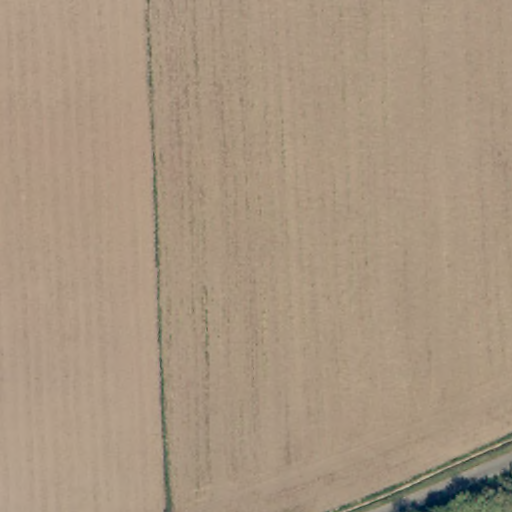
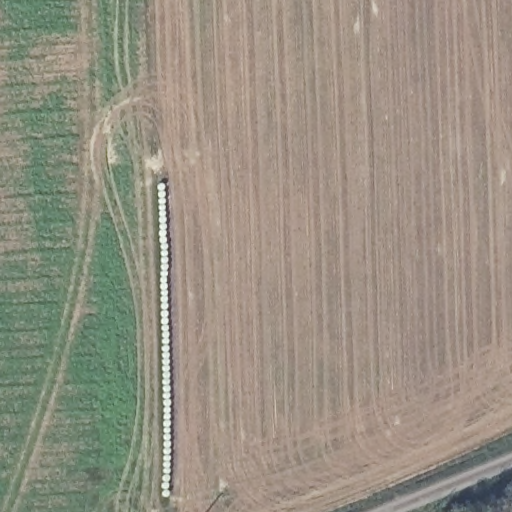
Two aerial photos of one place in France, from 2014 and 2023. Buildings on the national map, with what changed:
[]

